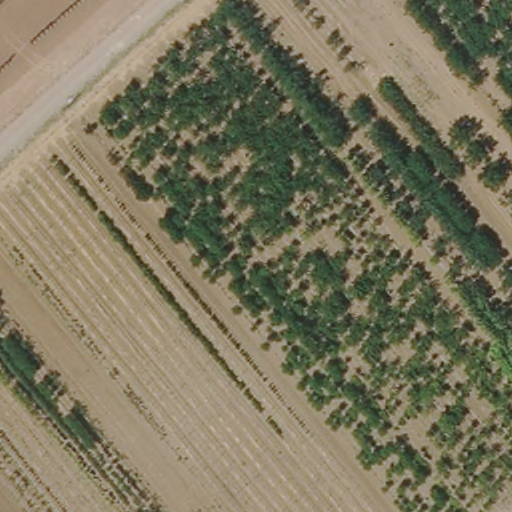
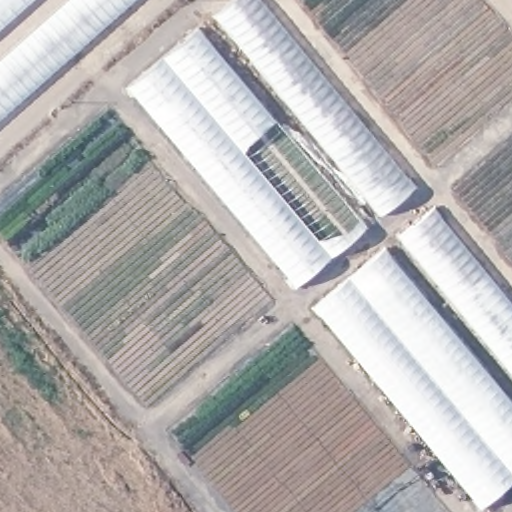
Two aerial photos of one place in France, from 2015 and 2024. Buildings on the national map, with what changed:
new [(26,4),(0,29),(0,0),(31,0),(26,4)]
new [(0,119),(0,58),(65,0),(135,0),(0,119)]
new [(229,0),(264,0),(419,184),(383,214),(214,12),(229,0)]
new [(197,29),(366,228),(295,289),(126,89),(197,29)]
new [(433,210),(512,304),(512,377),(398,239),(433,210)]
new [(314,308),(385,248),(512,402),(512,481),(480,508),(314,308)]

